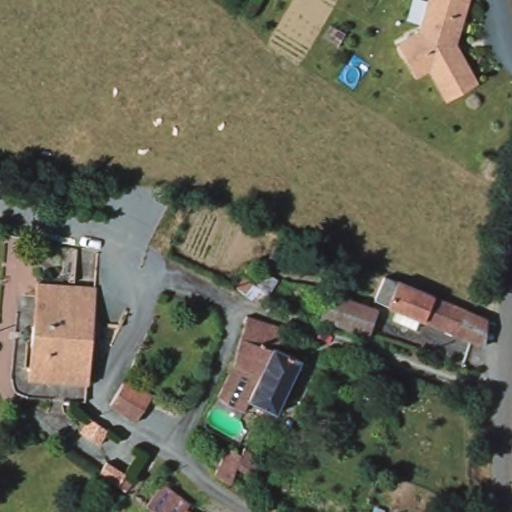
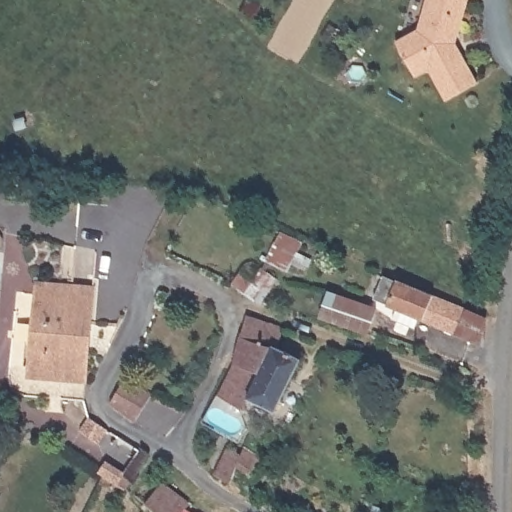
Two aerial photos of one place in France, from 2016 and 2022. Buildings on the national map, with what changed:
unchanged [(410,62),(399,40),(421,29),(430,0),(472,0),(461,38),(459,44),(464,54),(479,83),(447,100),(431,69),(417,75),(410,62)]
unchanged [(250,262),(284,280),(275,302),(254,300),(234,284),(250,262)]
unchanged [(466,339),(382,304),(392,280),(409,286),(476,314),(486,317),(490,319),(489,348),(466,339)]
unchanged [(94,286),(87,383),(28,378),(36,281),(94,286)]
unchanged [(332,286),(381,306),(371,331),(337,317),(334,316),(321,311),(332,286)]
unchanged [(220,389),(230,368),(227,361),(242,327),(247,316),(289,329),(280,347),(304,357),(279,414),(220,389)]
unchanged [(110,403),(126,377),(152,393),(134,420),(110,403)]
unchanged [(222,475),(237,450),(249,457),(253,451),(268,459),(252,485),(242,478),(237,486),(222,475)]
unchanged [(194,501),(186,512),(159,512),(154,509),(169,484),(194,501)]

